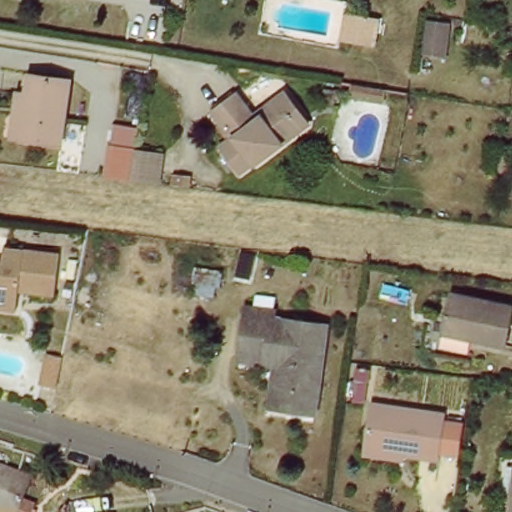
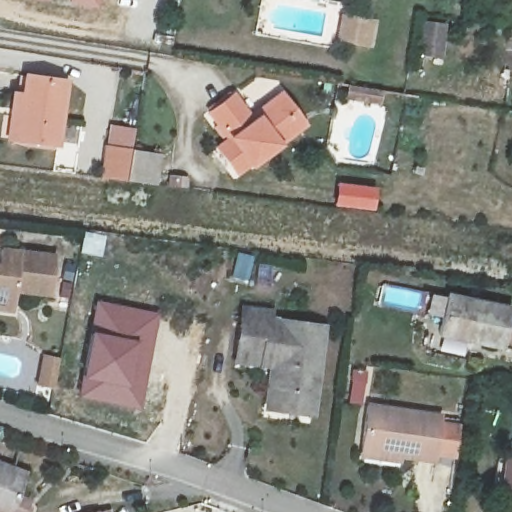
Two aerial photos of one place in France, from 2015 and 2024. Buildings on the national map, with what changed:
new [(98,9),(34,0),(100,0),(98,9)]
unchanged [(379,18),(375,47),(337,41),(342,12),(379,18)]
unchanged [(70,79),(63,147),(20,139),(28,72),(70,79)]
unchanged [(313,89),(315,77),(346,82),(344,94),(313,89)]
unchanged [(261,164),(249,177),(226,154),(237,143),(213,121),(233,100),(253,119),(281,90),(298,106),(310,117),(300,128),(263,166),(261,164)]
unchanged [(159,186),(131,182),(103,179),(110,124),(138,128),(134,153),(162,156),(159,186)]
new [(83,230),(106,234),(102,257),(78,253),(83,230)]
unchanged [(0,309),(0,257),(1,248),(56,255),(52,295),(15,291),(15,298),(13,311),(0,309)]
unchanged [(510,311),(502,348),(439,335),(446,297),(510,311)]
new [(94,299),(159,313),(137,409),(77,396),(94,299)]
unchanged [(243,343),(248,302),(277,306),(275,318),(324,327),(314,413),(277,407),(281,378),(265,375),(239,370),(243,343)]
new [(42,354),(60,358),(54,389),(35,385),(42,354)]
unchanged [(441,421),(435,465),(361,454),(367,411),(441,421)]
unchanged [(10,502),(20,508),(18,512),(0,512),(0,467),(23,481),(10,502)]
unchanged [(512,502),(512,512),(509,512),(510,502),(512,502)]

